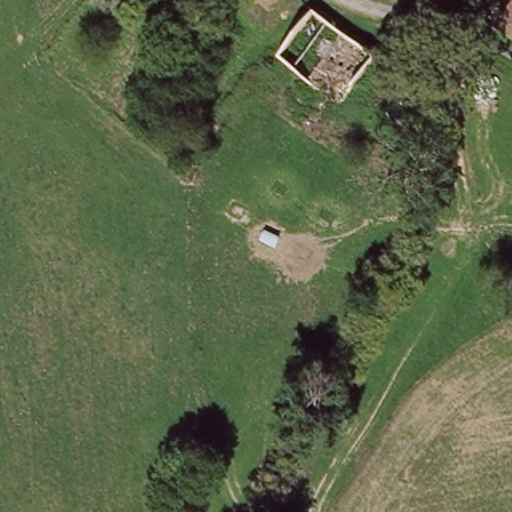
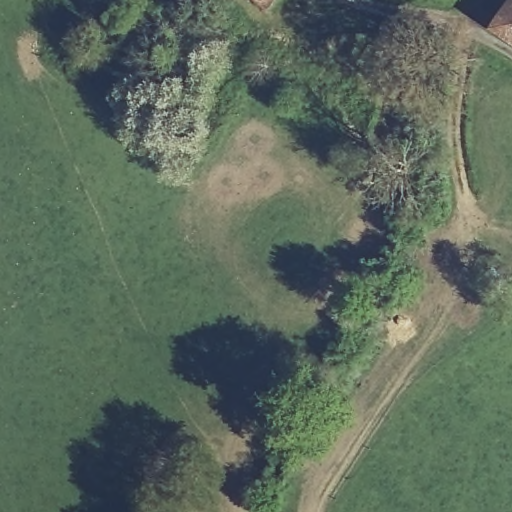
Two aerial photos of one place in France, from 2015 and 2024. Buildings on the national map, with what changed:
unchanged [(269,7),(259,0),(274,0),(269,7)]
unchanged [(496,29),(512,2),(512,40),(496,29)]
demolished [(316,15),(372,54),(341,105),(278,67),(316,15)]

